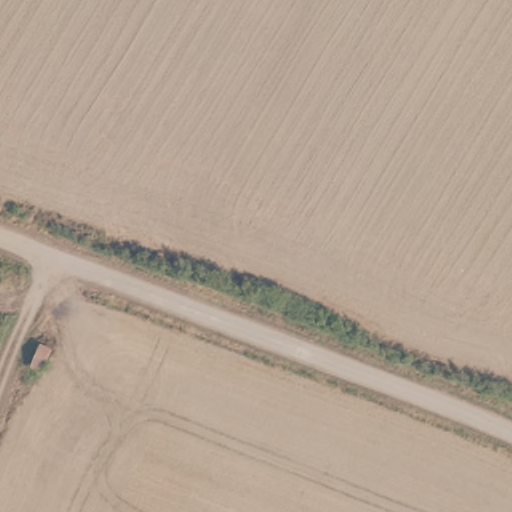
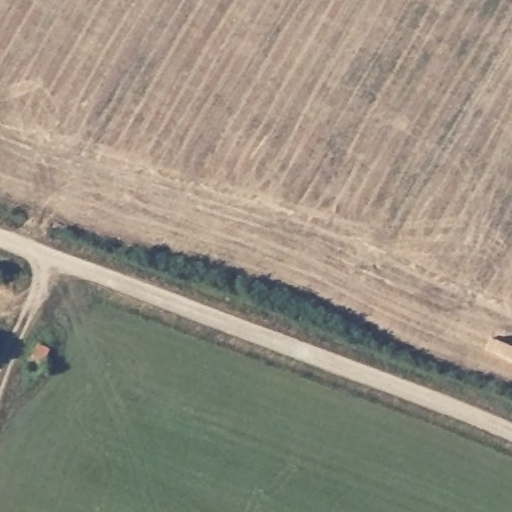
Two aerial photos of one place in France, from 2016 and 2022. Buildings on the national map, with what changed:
unchanged [(55,351),(46,376),(32,371),(41,346),(55,351)]

